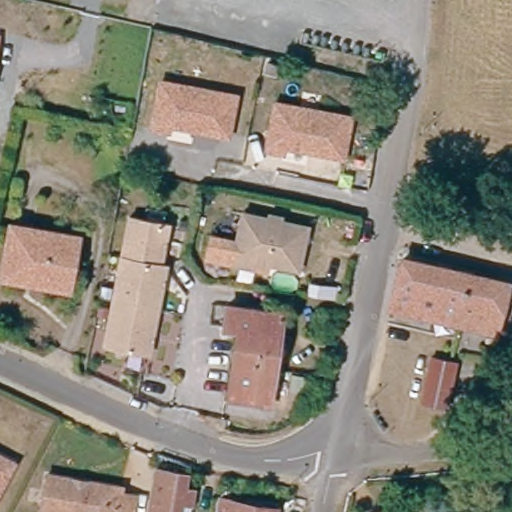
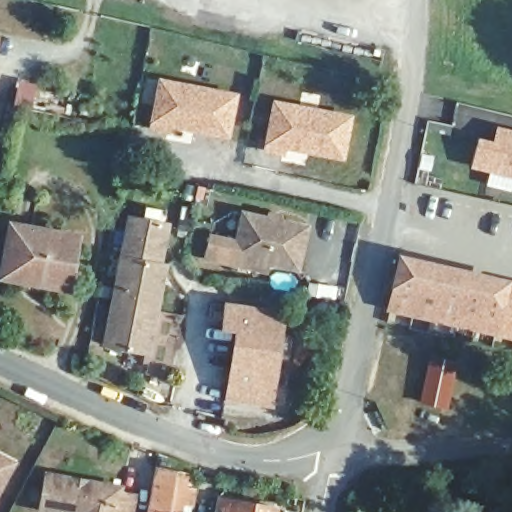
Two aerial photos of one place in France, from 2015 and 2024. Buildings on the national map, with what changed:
unchanged [(241,98),(233,139),(175,127),(173,133),(156,130),(166,83),(241,98)]
unchanged [(349,122),(341,162),(283,150),(282,156),(265,153),(274,106),(349,122)]
new [(494,141),(496,125),(512,129),(512,178),(470,169),(476,139),(494,141)]
unchanged [(241,207),(309,223),(299,271),(270,265),(268,275),(228,266),(241,207)]
unchanged [(170,220),(163,262),(168,262),(150,355),(101,345),(126,212),(170,220)]
unchanged [(0,275),(8,224),(75,236),(64,286),(49,284),(22,278),(0,275)]
unchanged [(402,269),(404,257),(507,282),(497,330),(393,307),(402,269)]
new [(507,282),(512,283),(512,333),(497,330),(507,282)]
unchanged [(225,317),(228,297),(250,301),(284,308),(268,398),(229,392),(238,320),(225,317)]
unchanged [(451,364),(440,409),(421,406),(432,361),(451,364)]
unchanged [(0,498),(0,451),(17,456),(0,498)]
unchanged [(179,483),(186,486),(184,500),(176,499),(173,512),(144,512),(154,466),(169,470),(181,473),(179,483)]
unchanged [(136,501),(134,512),(36,512),(43,477),(123,493),(121,498),(136,501)]
unchanged [(220,512),(222,498),(277,507),(276,512),(220,512)]

